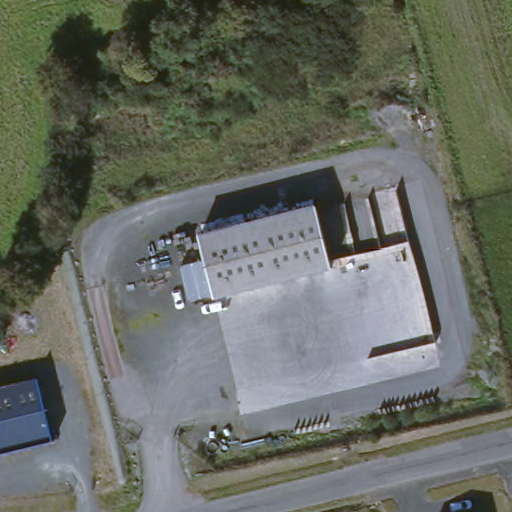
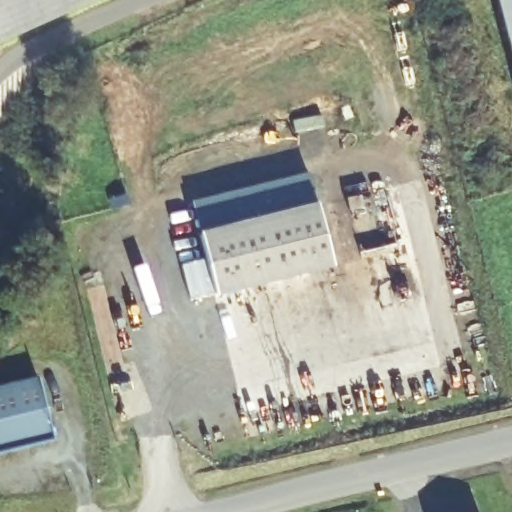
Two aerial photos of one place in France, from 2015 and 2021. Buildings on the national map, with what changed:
new [(0,0),(103,0),(0,47),(0,0)]
new [(504,0),(512,0),(512,31),(504,0)]
unchanged [(212,303),(209,296),(188,301),(181,268),(203,262),(198,235),(316,208),(331,268),(212,303)]
unchanged [(0,391),(39,382),(52,442),(0,456),(0,391)]

